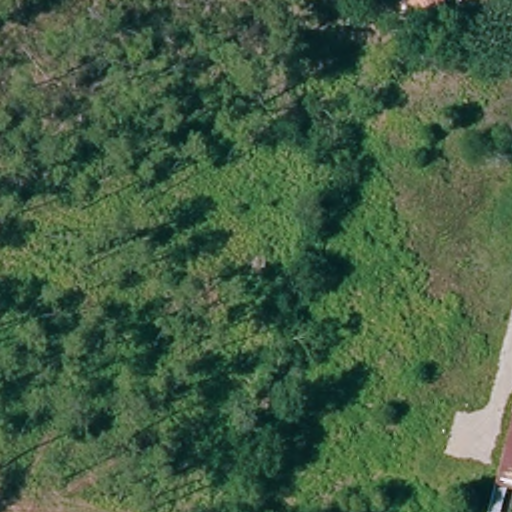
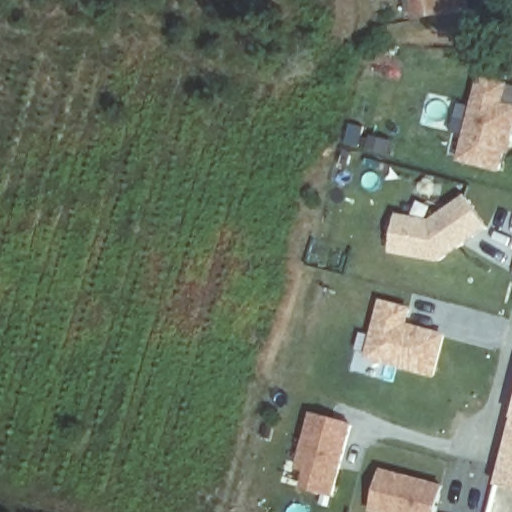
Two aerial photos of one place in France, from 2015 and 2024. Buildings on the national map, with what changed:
new [(454,7),(429,11),(427,0),(452,0),(454,7)]
new [(504,152),(499,170),(459,160),(479,79),(508,87),(505,102),(512,105),(512,140),(509,153),(504,152)]
new [(439,261),(391,252),(396,212),(430,219),(466,195),(487,227),(439,261)]
new [(434,376),(367,357),(381,300),(412,307),(409,325),(445,334),(434,376)]
new [(354,422),(334,496),(302,489),(306,470),(296,468),(310,413),(354,422)]
new [(512,489),(497,485),(512,435),(512,489)]
new [(438,512),(369,512),(381,468),(445,485),(438,512)]

